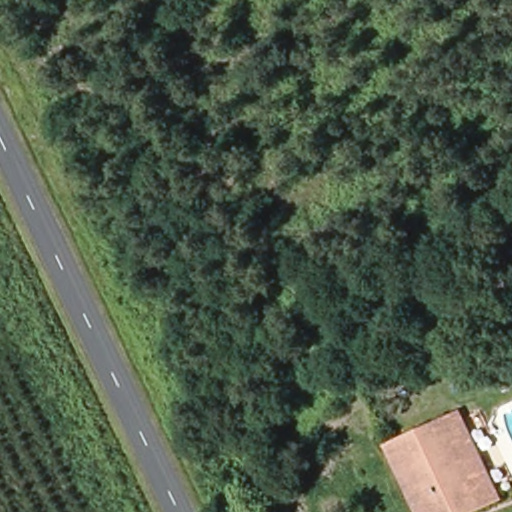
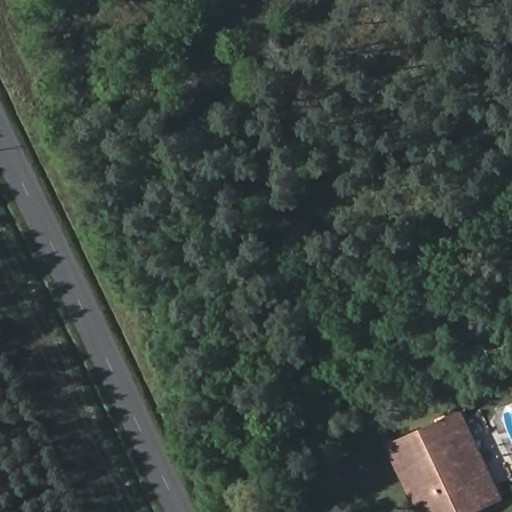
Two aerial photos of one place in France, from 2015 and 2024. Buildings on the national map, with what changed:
unchanged [(419,512),(388,449),(460,411),(507,500),(481,512),(419,512)]

